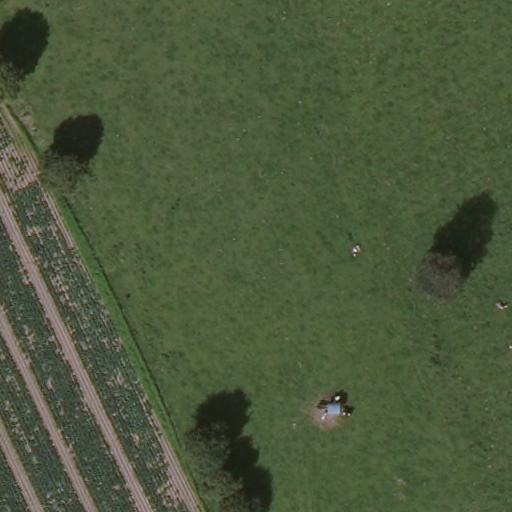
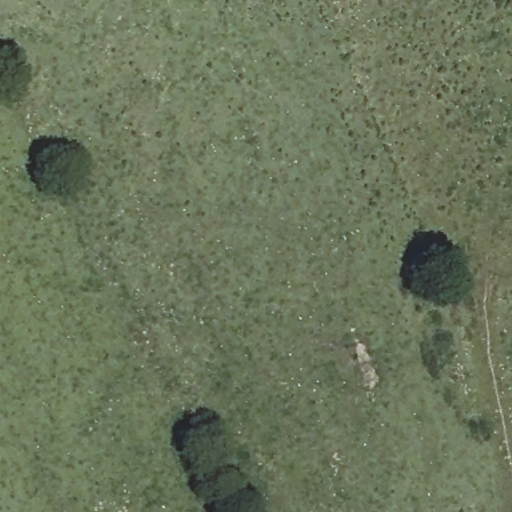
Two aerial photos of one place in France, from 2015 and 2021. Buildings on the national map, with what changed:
[]

